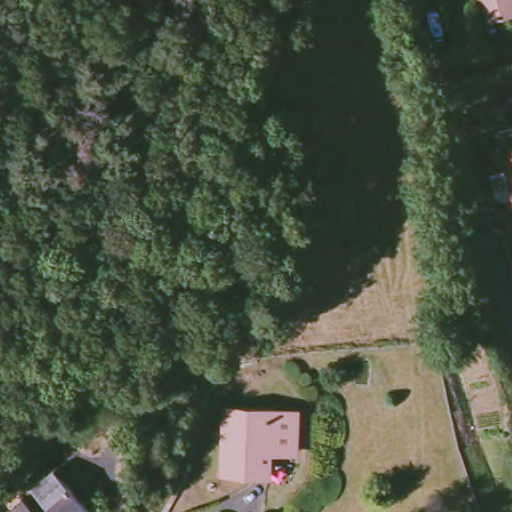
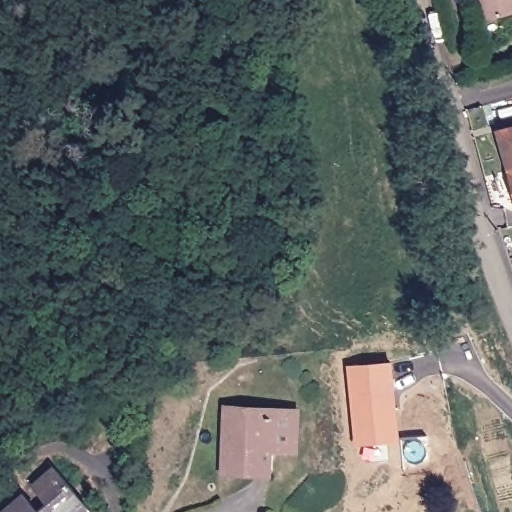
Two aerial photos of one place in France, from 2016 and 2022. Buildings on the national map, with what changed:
unchanged [(479,14),(475,0),(512,0),(512,11),(481,20),(479,14)]
unchanged [(512,130),(512,189),(496,135),(512,130)]
new [(390,363),(397,440),(356,444),(348,367),(390,363)]
unchanged [(255,471),(221,469),(225,404),(298,410),(295,450),(268,448),(267,472),(255,471)]
unchanged [(32,487),(54,469),(87,508),(83,512),(44,512),(50,506),(32,487)]
unchanged [(31,512),(3,512),(20,498),(31,512)]

